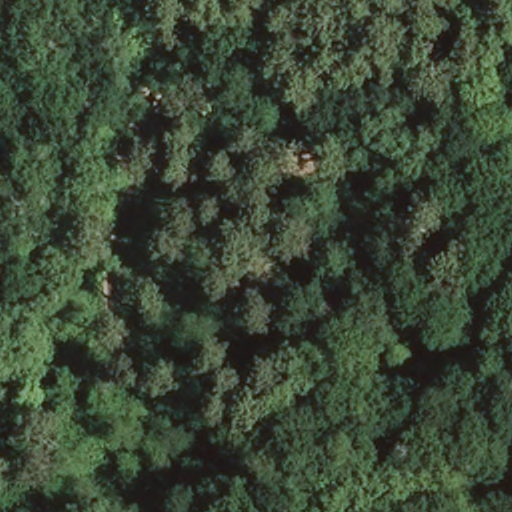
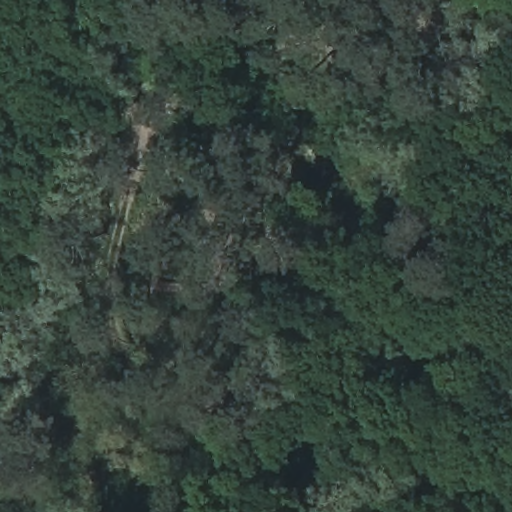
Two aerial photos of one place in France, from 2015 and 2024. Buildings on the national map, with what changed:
[]

